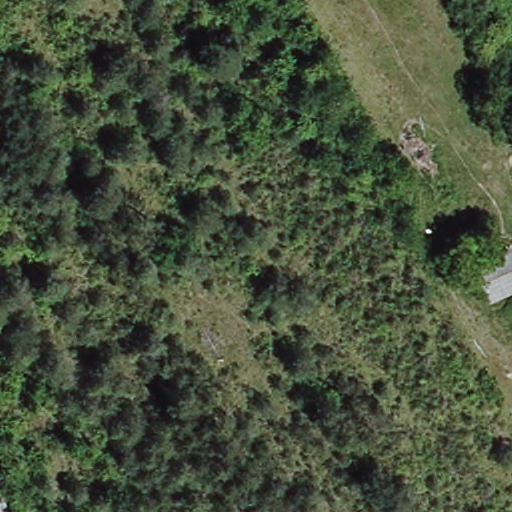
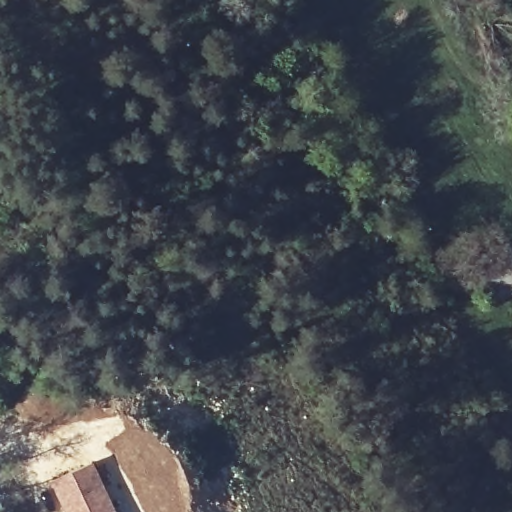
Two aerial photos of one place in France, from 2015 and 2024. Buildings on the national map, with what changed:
unchanged [(480,306),(460,270),(497,251),(512,281),(512,288),(480,306)]
new [(117,512),(62,512),(47,482),(92,460),(117,512)]

